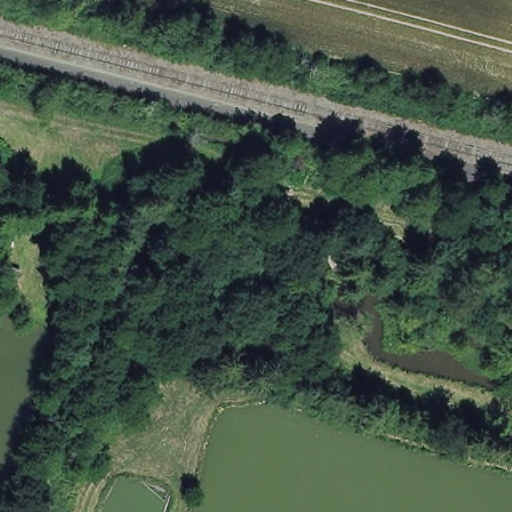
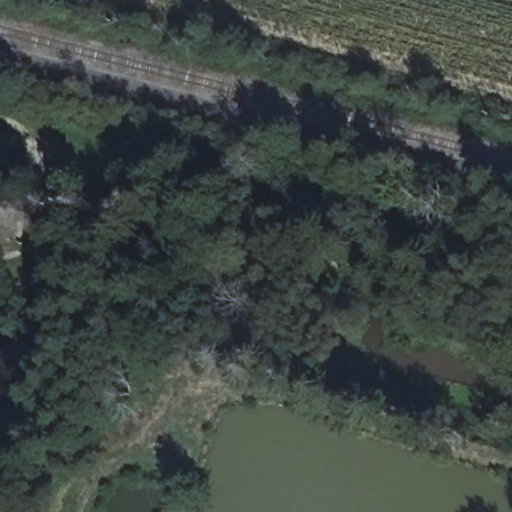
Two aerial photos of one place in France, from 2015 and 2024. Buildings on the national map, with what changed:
[]

